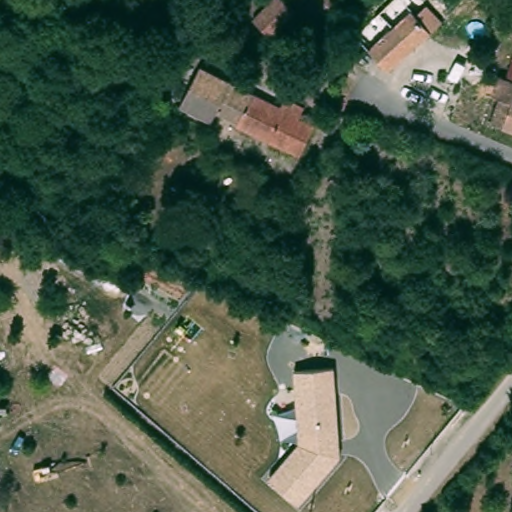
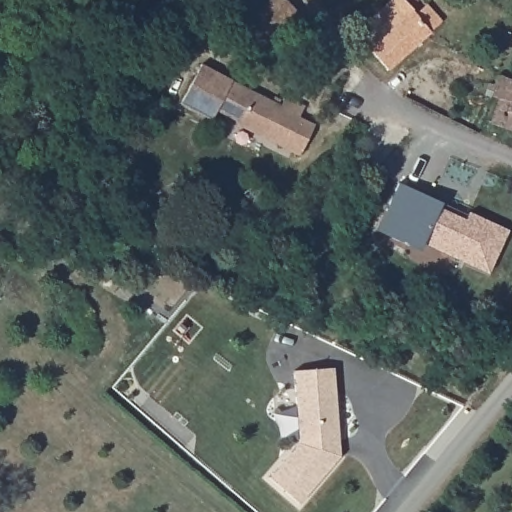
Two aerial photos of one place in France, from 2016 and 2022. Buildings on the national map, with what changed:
unchanged [(291,19),(274,1),(275,0),(313,0),(291,19)]
unchanged [(411,15),(423,5),(440,21),(389,74),(367,50),(352,35),(375,14),(387,30),(405,12),(411,15)]
unchanged [(507,99),(487,92),(495,69),(512,74),(512,130),(494,123),(507,99)]
unchanged [(212,109),(210,115),(206,125),(187,118),(173,112),(191,70),(216,80),(281,108),(284,98),(305,105),(300,117),(314,123),(299,155),(233,126),(236,118),(212,109)]
new [(489,274),(422,242),(420,249),(378,230),(398,183),(467,216),(469,212),(508,230),(489,274)]
unchanged [(336,368),(342,457),(299,505),(269,480),(299,446),(294,371),(336,368)]

